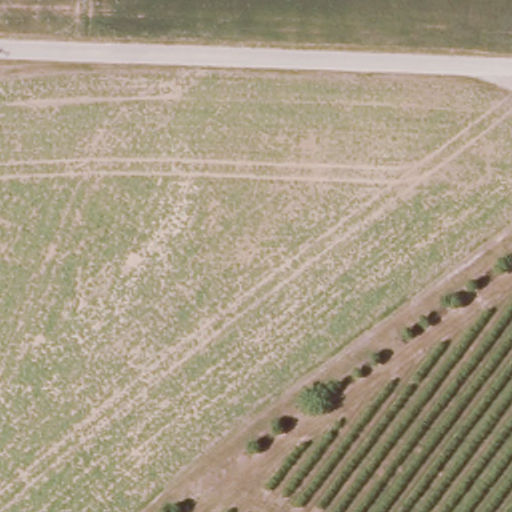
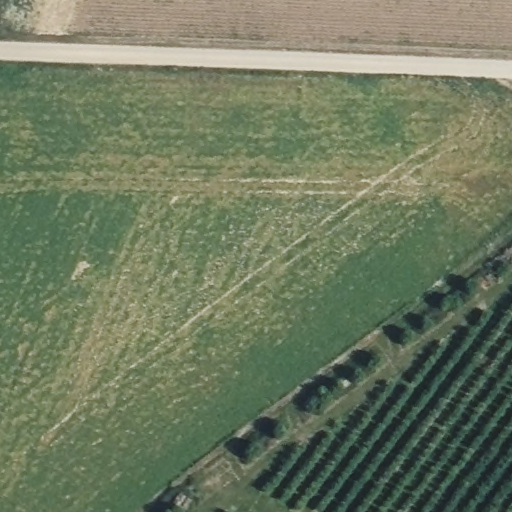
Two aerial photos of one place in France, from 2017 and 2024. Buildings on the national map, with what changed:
[]

